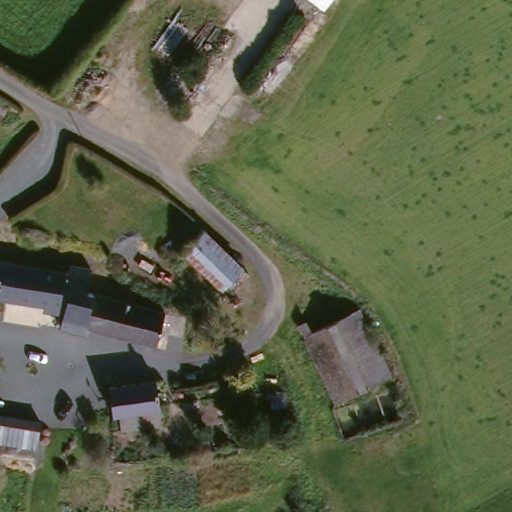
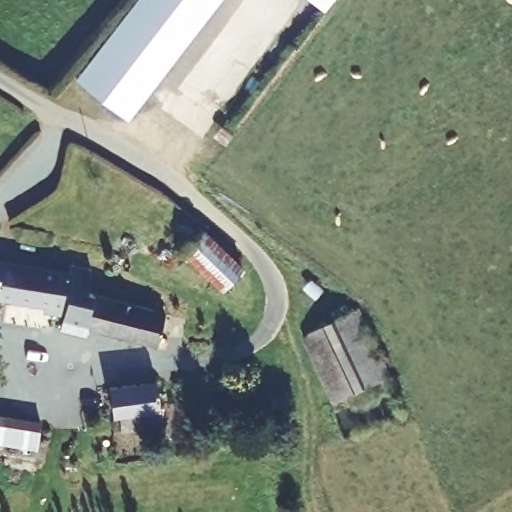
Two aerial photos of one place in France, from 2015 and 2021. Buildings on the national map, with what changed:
new [(74,77),(134,0),(217,0),(125,118),(74,77)]
unchanged [(313,0),(331,0),(325,8),(313,0)]
unchanged [(188,253),(206,232),(241,268),(247,274),(229,293),(188,253)]
unchanged [(67,280),(69,274),(90,277),(86,299),(93,300),(187,324),(179,354),(85,332),(84,339),(58,333),(62,314),(0,304),(0,270),(67,280)]
unchanged [(387,381),(330,407),(292,335),(300,329),(305,338),(353,317),(387,381)]
unchanged [(155,394),(159,417),(111,423),(108,400),(155,394)]
unchanged [(38,422),(34,447),(0,442),(0,416),(38,422)]

